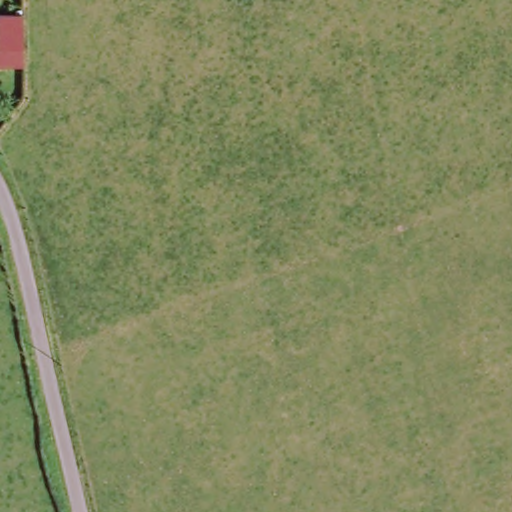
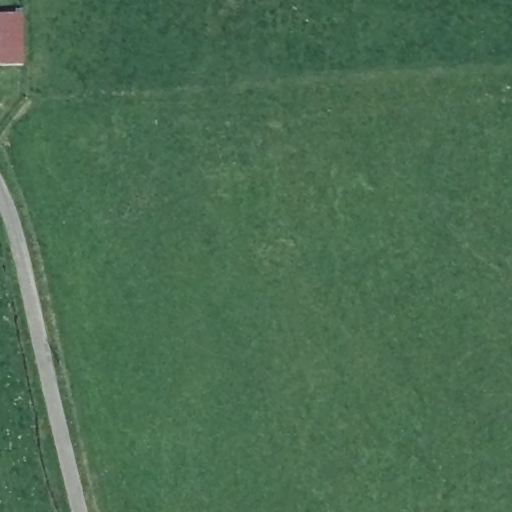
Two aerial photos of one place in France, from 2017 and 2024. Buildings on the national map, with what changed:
unchanged [(0,14),(23,14),(23,44),(24,65),(0,66),(0,14)]

